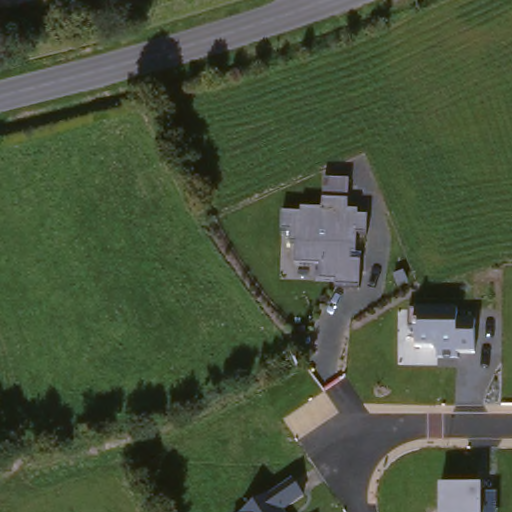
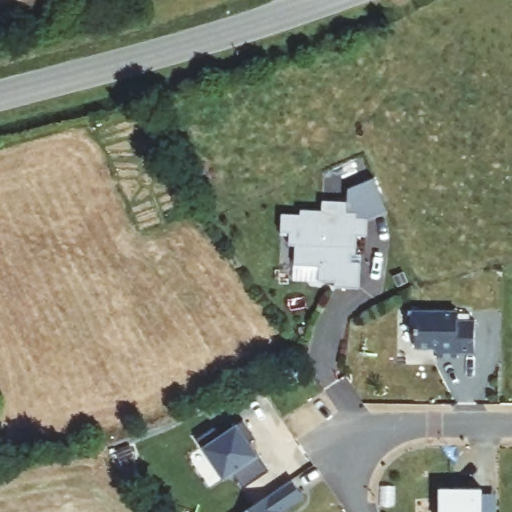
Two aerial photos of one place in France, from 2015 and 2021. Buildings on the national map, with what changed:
unchanged [(367,235),(358,234),(356,252),(352,252),(352,261),(360,262),(359,286),(335,285),(335,279),(318,279),(319,262),(294,261),(294,246),(288,245),(289,231),(282,230),(282,215),(301,215),(302,209),(322,209),(325,177),(349,179),(349,210),(359,211),(359,217),(367,218),(367,235)]
unchanged [(476,354),(456,355),(456,362),(436,361),(435,348),(414,348),(413,311),(458,311),(458,324),(475,324),(476,354)]
new [(217,429),(223,438),(246,422),(259,441),(249,448),(257,460),(260,457),(272,474),(247,491),(236,475),(227,480),(200,441),(217,429)]
unchanged [(305,500),(285,512),(246,512),(292,482),(305,500)]
unchanged [(439,512),(439,488),(483,487),(483,494),(495,493),(496,512),(439,512)]

